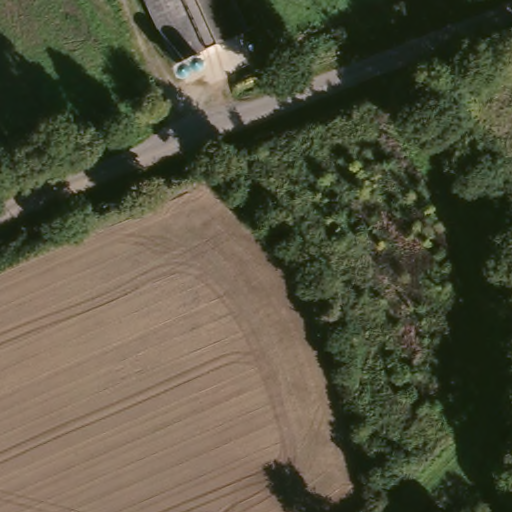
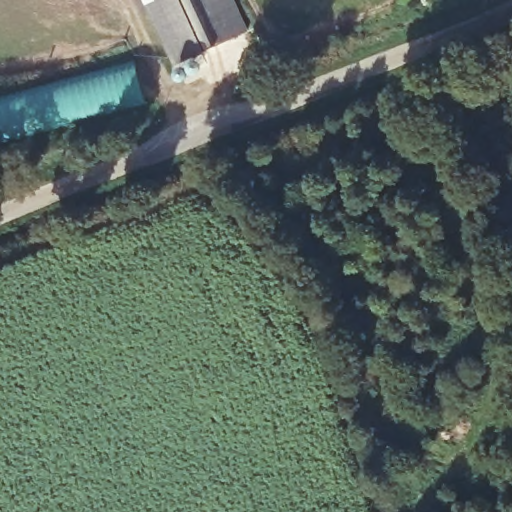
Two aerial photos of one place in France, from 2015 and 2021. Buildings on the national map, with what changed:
unchanged [(136,0),(224,0),(241,39),(167,71),(136,0)]
new [(146,97),(3,137),(0,129),(0,98),(135,63),(146,97)]

